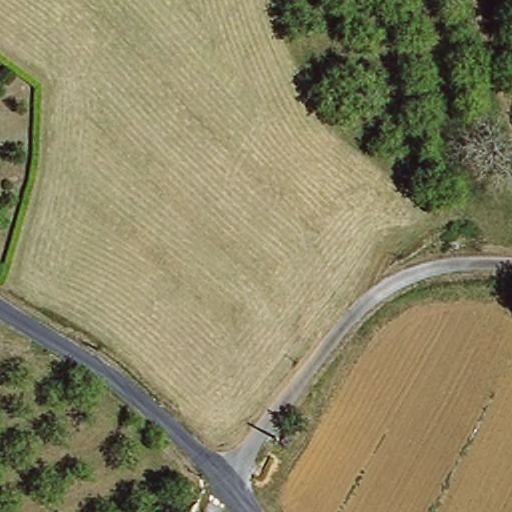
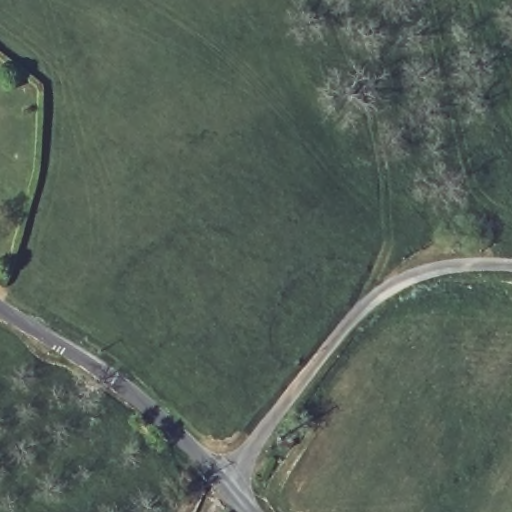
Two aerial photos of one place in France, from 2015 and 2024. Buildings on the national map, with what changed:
[]

